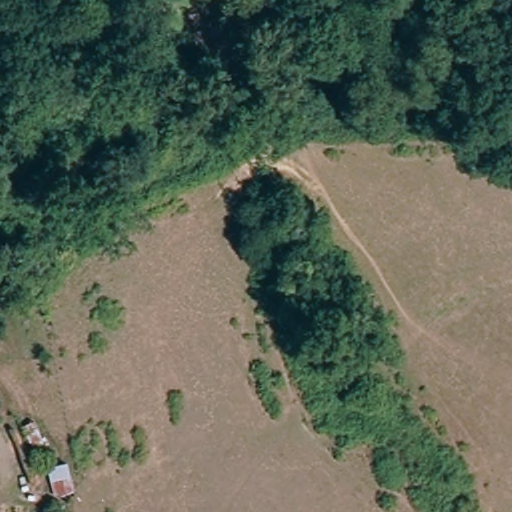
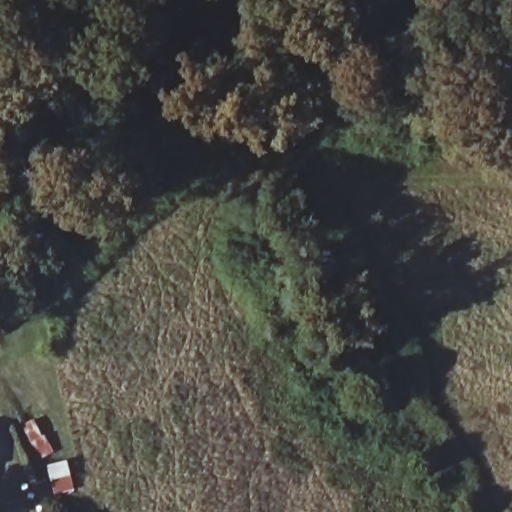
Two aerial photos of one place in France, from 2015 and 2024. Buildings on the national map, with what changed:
unchanged [(0,414),(0,398),(9,396),(15,410),(0,414)]

